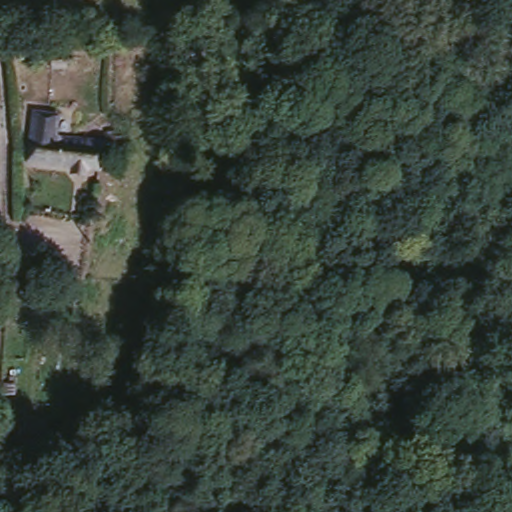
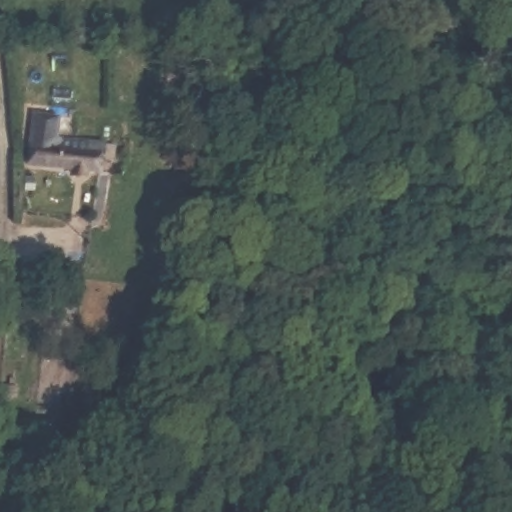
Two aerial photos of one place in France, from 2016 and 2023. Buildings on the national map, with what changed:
unchanged [(109,161),(96,160),(96,172),(30,172),(25,112),(51,111),(52,136),(96,137),(96,141),(108,142),(109,161)]
unchanged [(11,391),(25,392),(24,407),(11,405),(11,391)]
unchanged [(11,433),(42,436),(42,457),(10,453),(11,433)]

